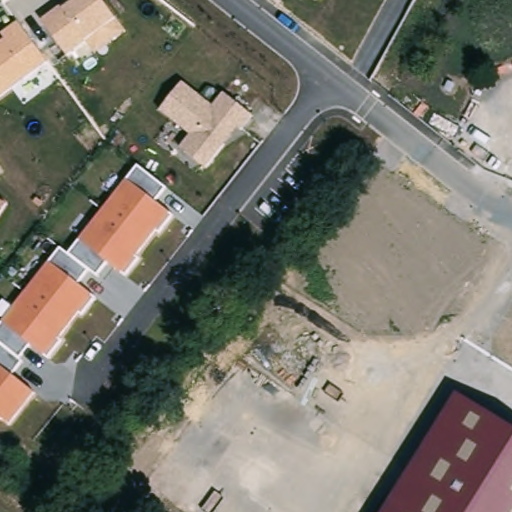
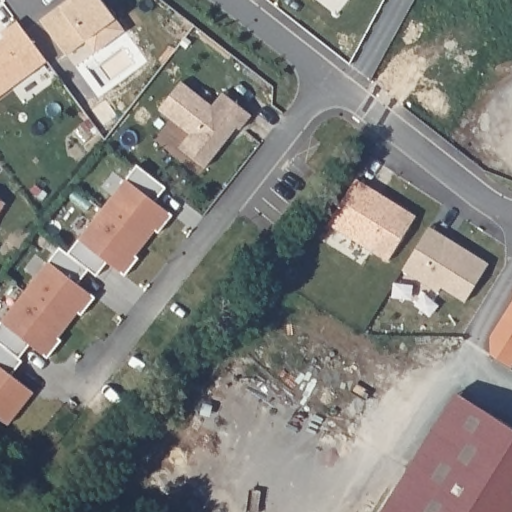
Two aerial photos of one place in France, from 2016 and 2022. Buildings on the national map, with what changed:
unchanged [(126,31),(95,52),(87,40),(67,55),(41,19),(65,0),(102,0),(116,18),(126,31)]
unchanged [(5,39),(2,34),(18,22),(47,61),(0,97),(0,43),(5,39)]
unchanged [(212,105),(222,91),(249,110),(207,165),(181,146),(190,133),(161,110),(179,83),(212,105)]
unchanged [(60,248),(69,253),(137,166),(166,188),(156,201),(173,214),(160,232),(156,230),(136,256),(140,258),(125,275),(107,262),(97,274),(90,270),(77,284),(95,297),(82,314),(80,312),(58,339),(62,341),(48,358),(30,344),(18,359),(22,362),(11,374),(34,392),(9,423),(0,418),(0,324),(60,248)]
new [(379,191),(398,203),(418,216),(390,261),(331,223),(359,179),(379,191)]
unchanged [(6,202),(0,211),(0,199),(6,202)]
new [(446,236),(465,248),(490,264),(467,302),(442,287),(440,292),(404,270),(431,227),(446,236)]
new [(512,367),(492,355),(491,336),(512,301),(512,367)]
demolished [(470,321),(480,327),(468,344),(459,338),(470,321)]
unchanged [(512,426),(512,512),(382,512),(458,392),(512,426)]

